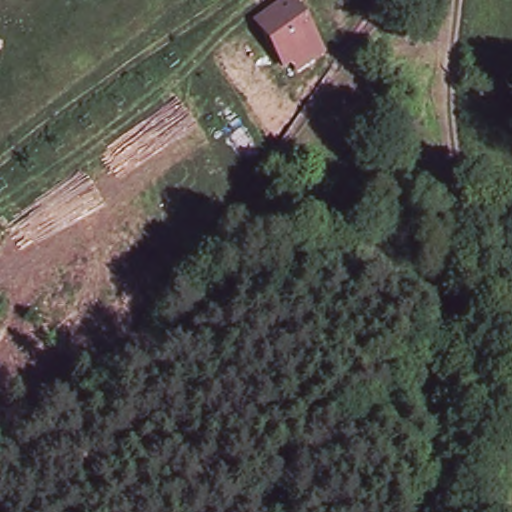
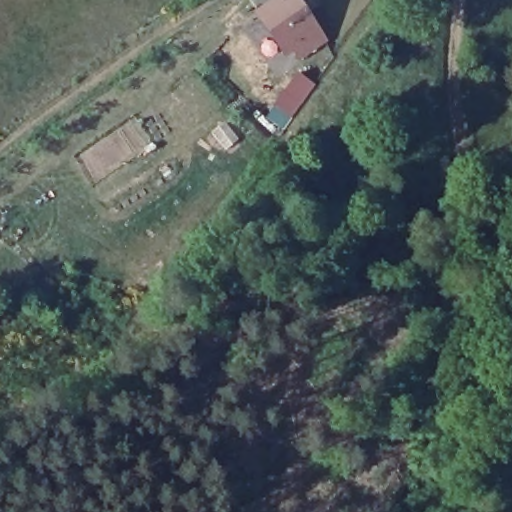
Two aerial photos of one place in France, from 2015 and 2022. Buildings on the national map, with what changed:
unchanged [(300,0),(321,32),(327,40),(300,59),(295,53),(285,59),(255,12),(272,0),(300,0)]

